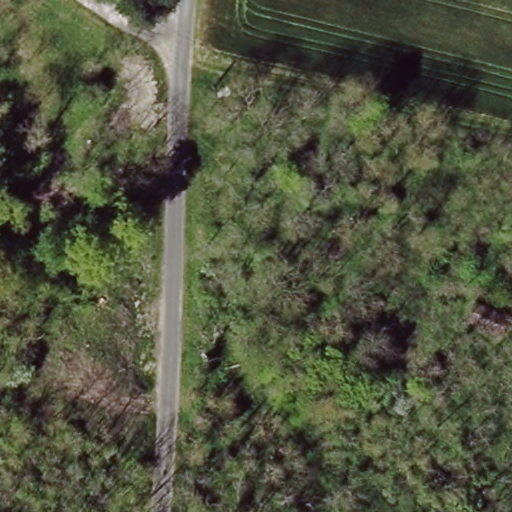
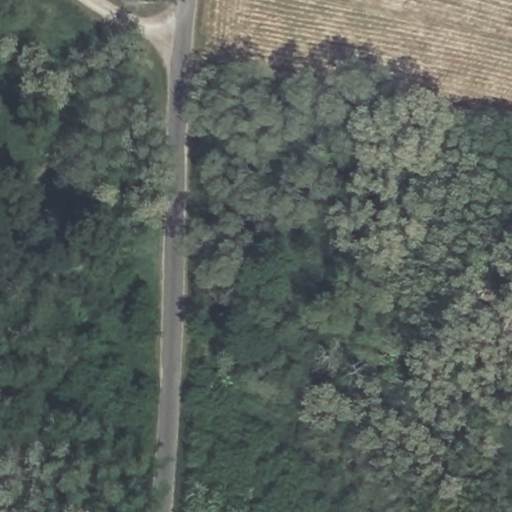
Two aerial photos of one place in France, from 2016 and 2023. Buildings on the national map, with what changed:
unchanged [(510,310),(503,340),(460,323),(471,293),(510,310)]

